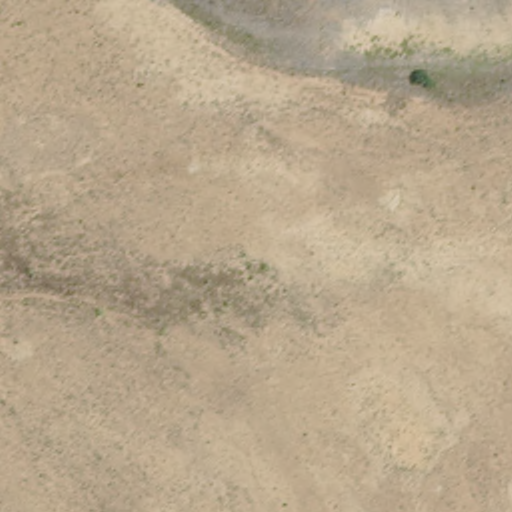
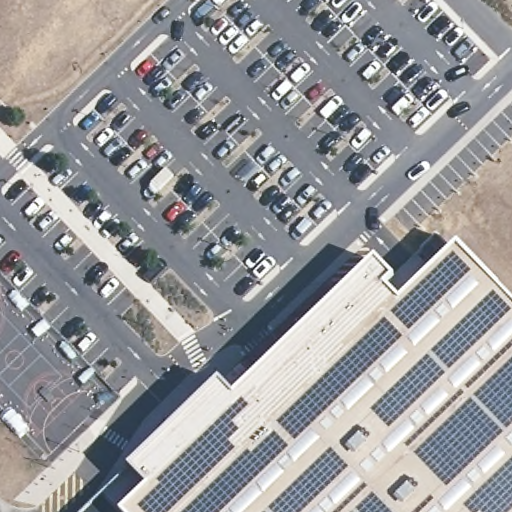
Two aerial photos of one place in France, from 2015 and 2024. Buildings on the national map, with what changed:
new [(512,512),(125,512),(150,488),(130,467),(218,383),(234,399),(372,261),(394,282),(386,291),(400,304),(455,249),(512,307),(512,512)]
new [(150,488),(125,512),(85,512),(130,467),(150,488)]

